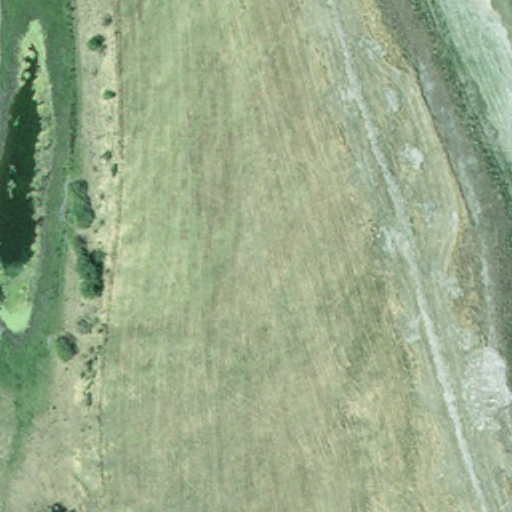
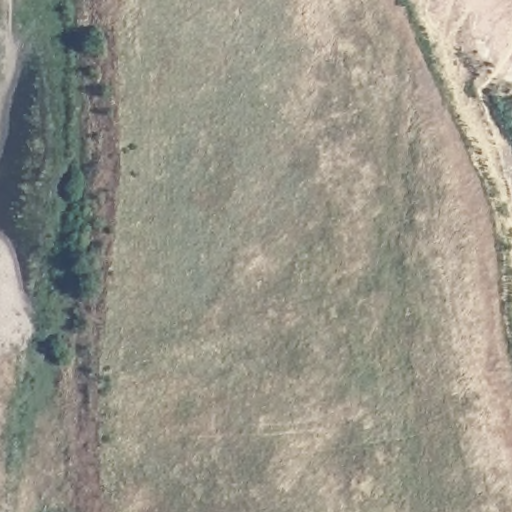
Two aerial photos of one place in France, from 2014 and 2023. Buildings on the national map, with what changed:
[]

